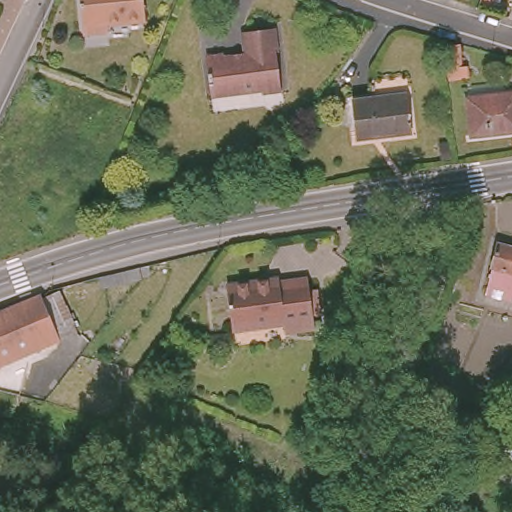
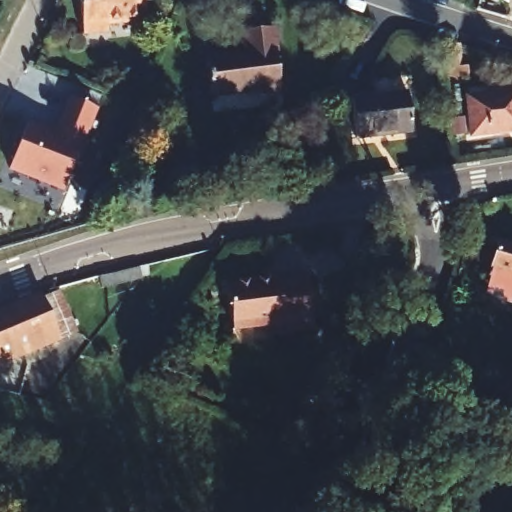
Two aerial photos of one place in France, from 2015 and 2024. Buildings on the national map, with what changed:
unchanged [(135,27),(102,27),(101,35),(78,34),(78,0),(135,0),(135,27)]
unchanged [(275,92),(257,92),(257,88),(205,86),(205,48),(225,49),(225,52),(245,51),(246,28),(277,30),(275,92)]
demolished [(450,52),(453,79),(433,81),(431,54),(450,52)]
unchanged [(512,87),(512,119),(509,120),(510,130),(470,134),(465,92),(512,87)]
unchanged [(407,127),(352,129),(350,92),(403,90),(407,127)]
new [(8,172),(27,121),(52,130),(67,98),(97,109),(62,192),(8,172)]
unchanged [(464,288),(479,232),(512,239),(512,298),(464,288)]
unchanged [(308,324),(232,337),(223,285),(243,281),(277,274),(280,286),(302,282),(305,305),(308,324)]
unchanged [(57,288),(73,330),(48,340),(45,334),(30,299),(57,288)]
unchanged [(0,331),(0,311),(30,299),(45,334),(22,344),(25,350),(0,360),(0,343),(5,341),(0,331)]
unchanged [(0,343),(0,331),(5,341),(0,343)]

